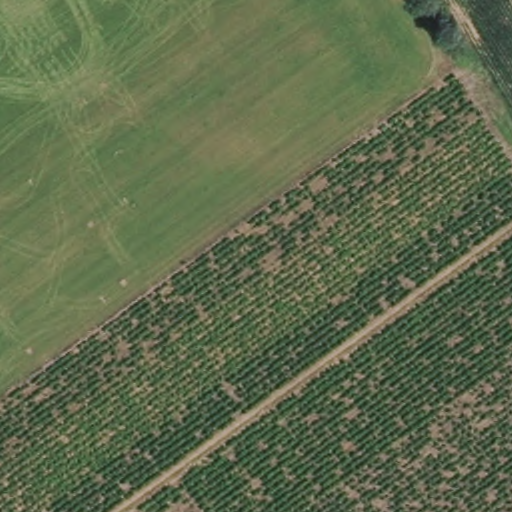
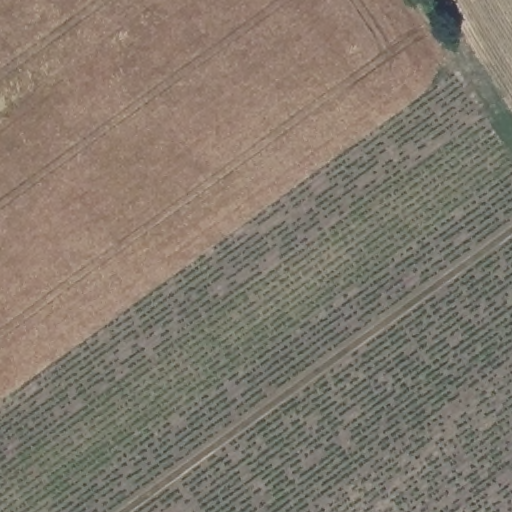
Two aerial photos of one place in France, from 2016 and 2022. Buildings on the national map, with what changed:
[]

